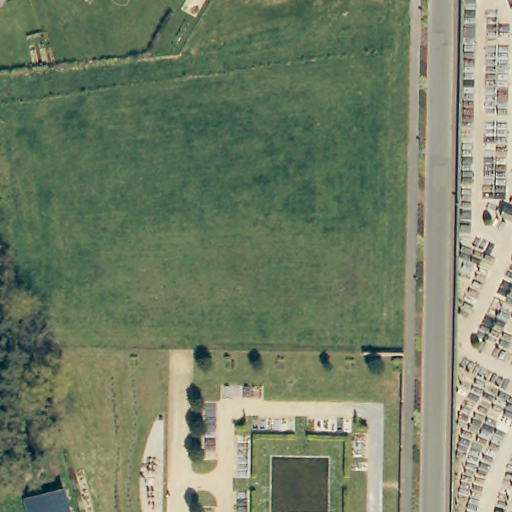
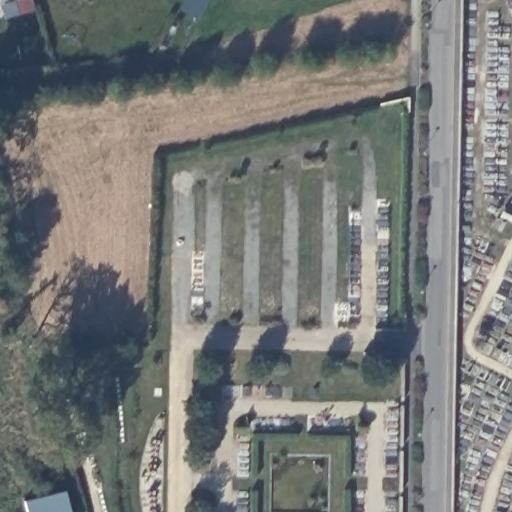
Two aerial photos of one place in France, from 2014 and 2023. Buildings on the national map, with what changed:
unchanged [(0,0),(2,0),(0,1),(0,0)]
unchanged [(64,490),(70,512),(26,512),(24,502),(64,490)]

